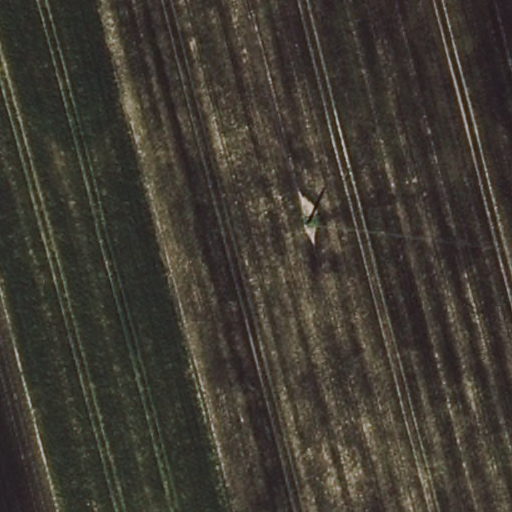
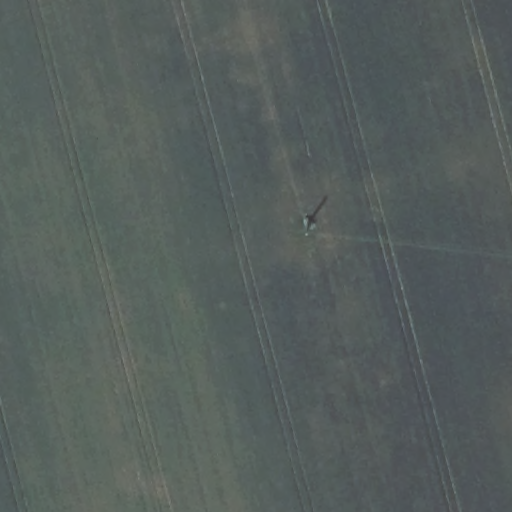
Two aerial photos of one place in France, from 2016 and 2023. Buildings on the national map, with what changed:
[]

